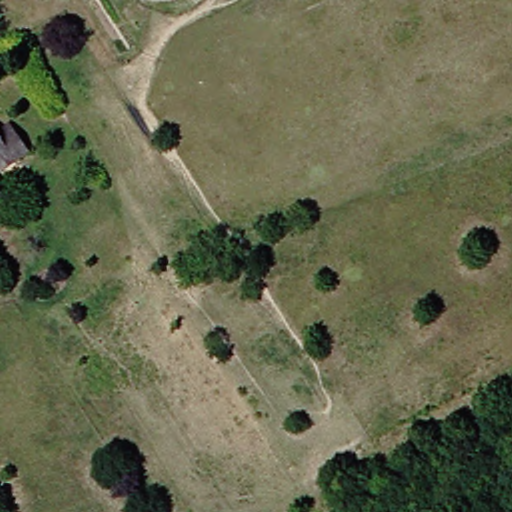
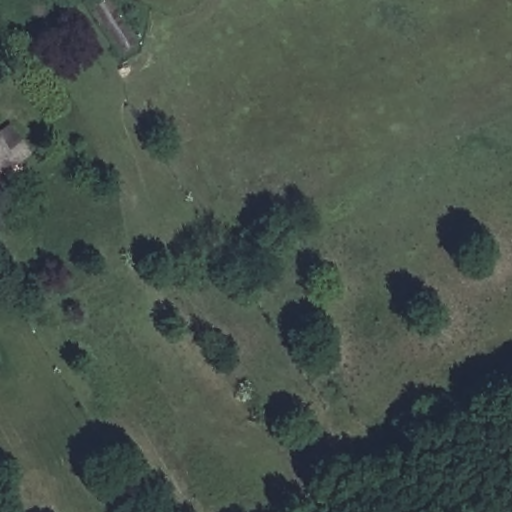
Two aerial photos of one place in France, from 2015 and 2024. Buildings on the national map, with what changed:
unchanged [(4,131),(23,159),(0,175),(0,133),(4,131)]

